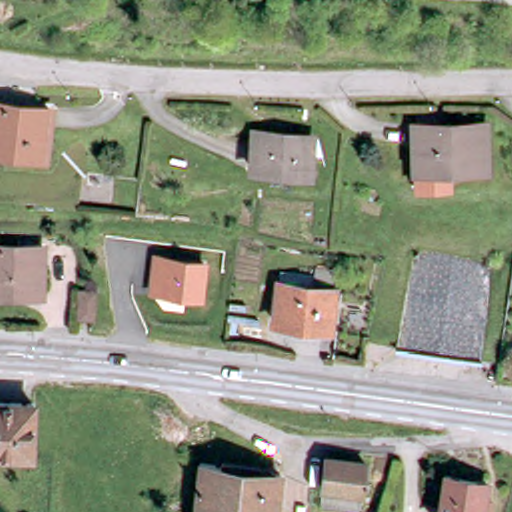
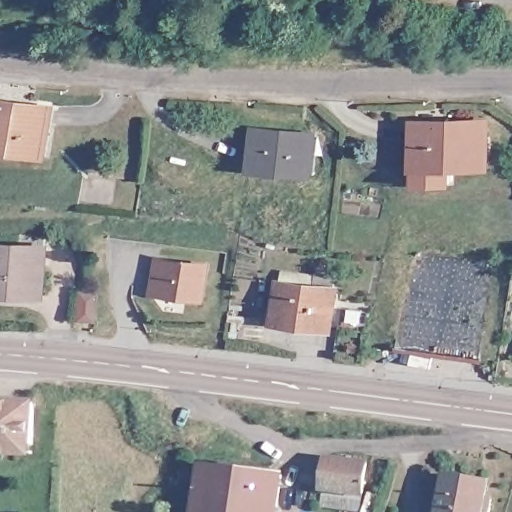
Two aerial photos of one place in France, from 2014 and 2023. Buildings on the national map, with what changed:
unchanged [(0,151),(0,106),(60,115),(52,159),(0,151)]
unchanged [(422,130),(421,130),(422,172),(450,172),(450,187),(414,187),(413,173),(410,173),(409,120),(489,119),(490,128),(422,130)]
unchanged [(491,171),(422,172),(421,130),(490,128),(491,171)]
unchanged [(310,182),(255,175),(258,139),(312,144),(310,182)]
unchanged [(476,359),(392,348),(407,247),(492,260),(476,359)]
unchanged [(0,304),(0,256),(42,256),(42,304),(0,304)]
unchanged [(208,265),(205,302),(149,296),(152,256),(208,265)]
unchanged [(340,284),(333,344),(278,335),(282,298),(284,285),(307,288),(309,280),(340,284)]
unchanged [(87,314),(86,330),(82,330),(77,330),(78,314),(82,314),(87,314)]
unchanged [(501,370),(502,358),(512,360),(512,372),(501,370)]
unchanged [(0,454),(0,405),(32,406),(31,444),(30,454),(17,454),(0,454)]
unchanged [(327,506),(334,457),(375,462),(368,512),(327,506)]
unchanged [(276,512),(195,512),(199,476),(280,485),(276,512)]
unchanged [(482,502),(489,503),(487,512),(440,512),(445,481),(485,488),(482,502)]

